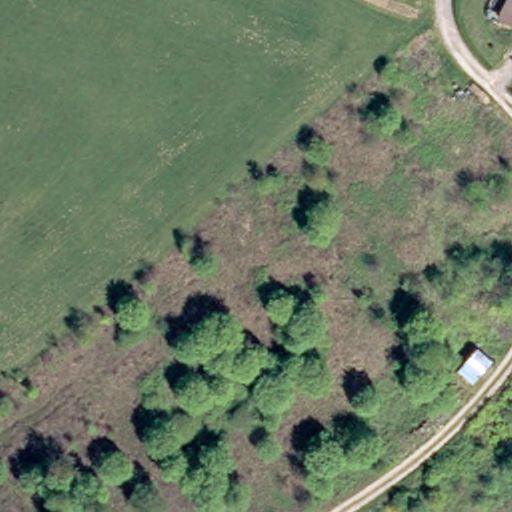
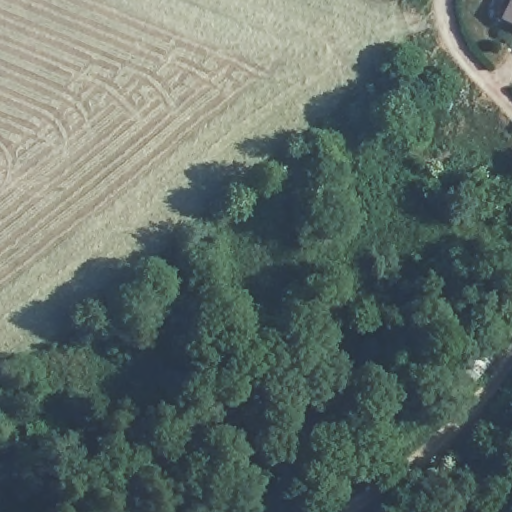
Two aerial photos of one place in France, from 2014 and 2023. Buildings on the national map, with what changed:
unchanged [(501,13),(507,0),(512,0),(512,19),(501,13)]
unchanged [(497,309),(506,276),(512,277),(512,313),(497,309)]
unchanged [(491,359),(474,380),(460,369),(477,348),(491,359)]

